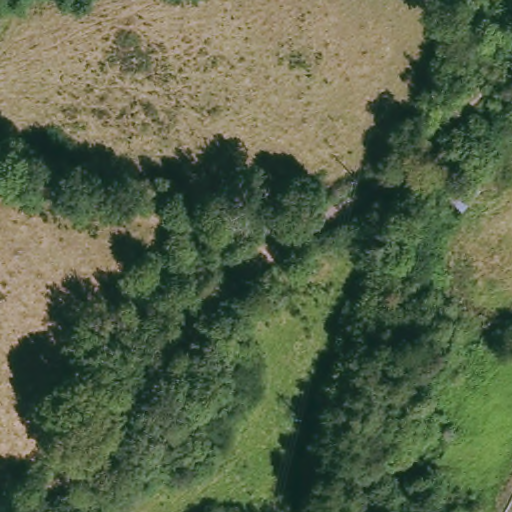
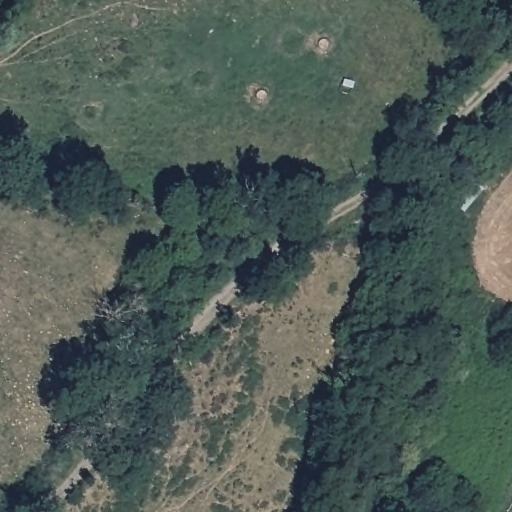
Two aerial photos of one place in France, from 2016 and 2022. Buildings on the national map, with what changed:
unchanged [(465,212),(452,200),(473,177),(487,190),(465,212)]

